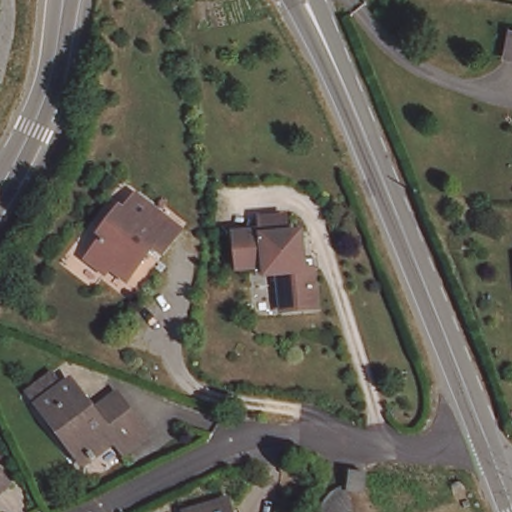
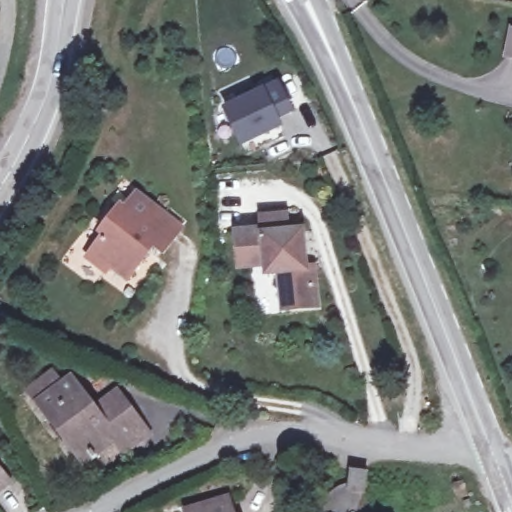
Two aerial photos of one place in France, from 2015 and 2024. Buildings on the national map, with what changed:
unchanged [(510,55),(512,37),(512,55),(510,55)]
new [(242,148),(224,109),(265,90),(278,83),(294,113),(280,120),(285,128),(242,148)]
unchanged [(150,252),(127,284),(110,271),(103,279),(87,265),(122,217),(135,201),(152,214),(176,234),(158,258),(150,252)]
unchanged [(280,284),(267,285),(265,275),(239,278),(235,246),(261,243),(260,231),(285,229),(285,244),(300,242),(305,281),(313,281),(317,316),(284,319),(280,284)]
unchanged [(108,435),(77,458),(33,399),(25,388),(48,371),(56,382),(63,377),(87,407),(112,390),(140,428),(117,446),(108,435)]
unchanged [(0,478),(1,479),(0,480),(0,478)]
unchanged [(231,512),(185,512),(227,500),(231,512)]

